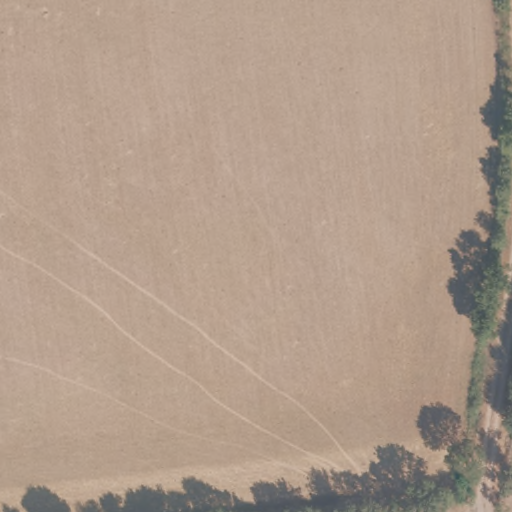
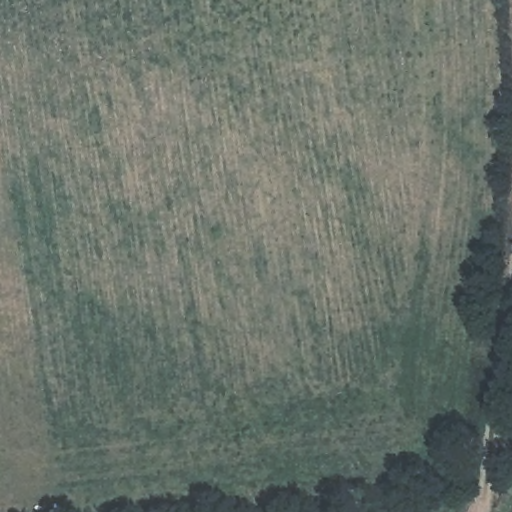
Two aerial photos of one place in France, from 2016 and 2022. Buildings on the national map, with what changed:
[]

